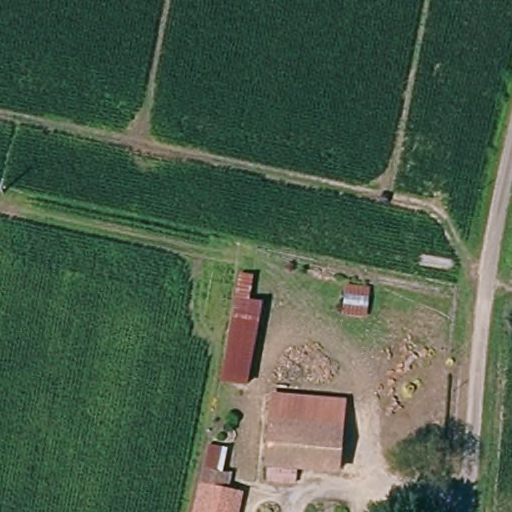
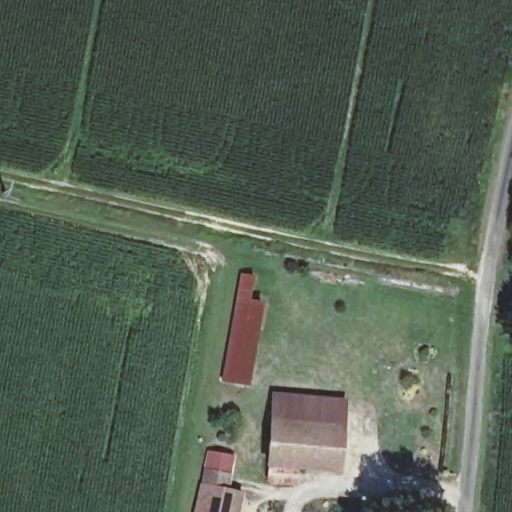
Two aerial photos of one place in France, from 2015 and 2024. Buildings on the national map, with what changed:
unchanged [(222,383),(239,275),(254,278),(249,302),(262,306),(245,386),(222,383)]
unchanged [(259,432),(264,385),(352,392),(349,438),(259,432)]
unchanged [(259,432),(349,438),(345,486),(297,482),(254,477),(259,432)]
unchanged [(227,450),(223,475),(232,475),(230,492),(243,494),(242,512),(195,512),(208,447),(227,450)]

